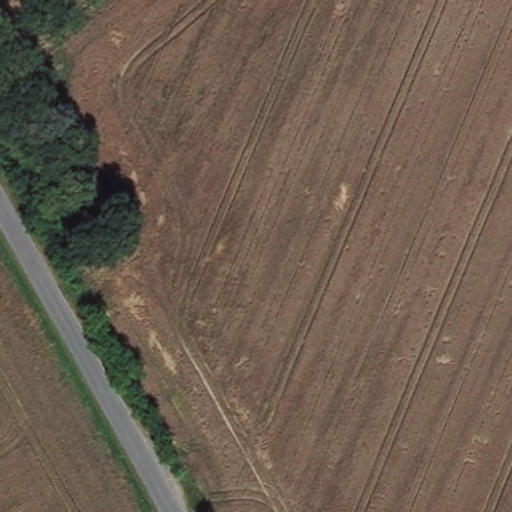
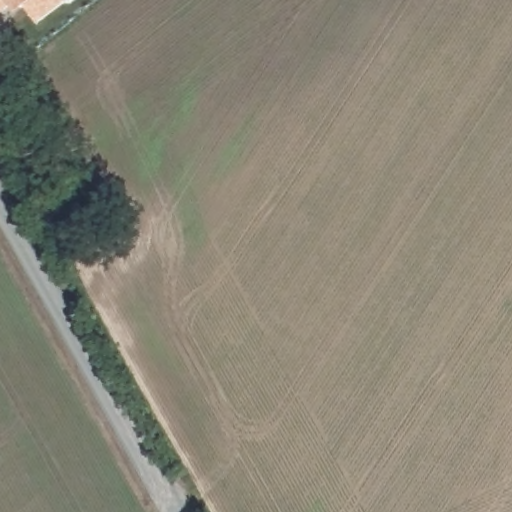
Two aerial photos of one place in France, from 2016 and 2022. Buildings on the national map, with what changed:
new [(6,7),(0,12),(0,0),(59,0),(62,3),(33,25),(21,8),(19,9),(12,14),(6,7)]

